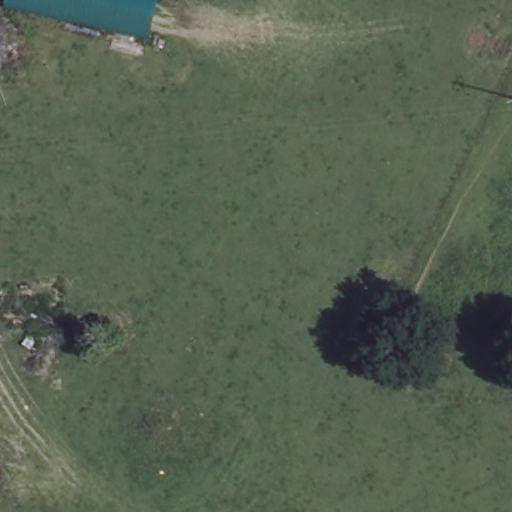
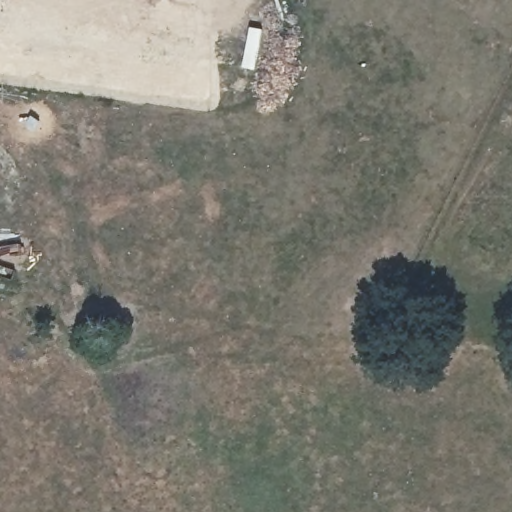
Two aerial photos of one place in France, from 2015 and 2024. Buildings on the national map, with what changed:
new [(3,0),(157,0),(148,40),(2,7),(3,0)]

